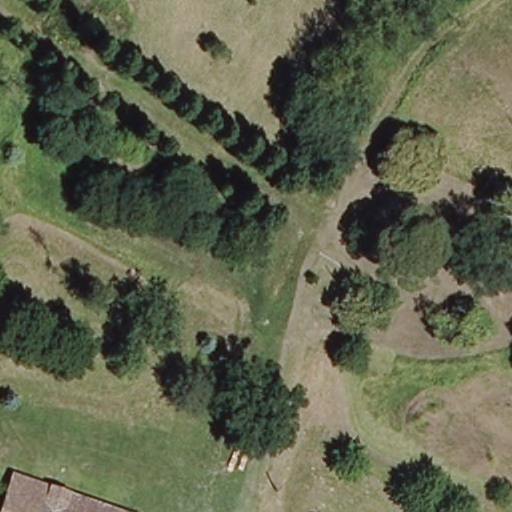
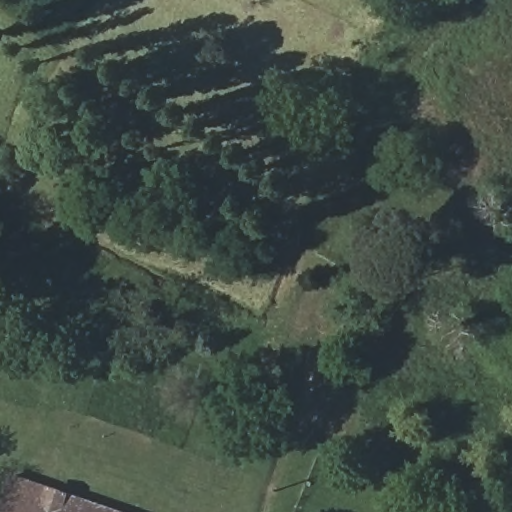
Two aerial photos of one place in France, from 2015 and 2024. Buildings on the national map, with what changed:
unchanged [(138,512),(0,512),(0,510),(19,463),(138,512)]

